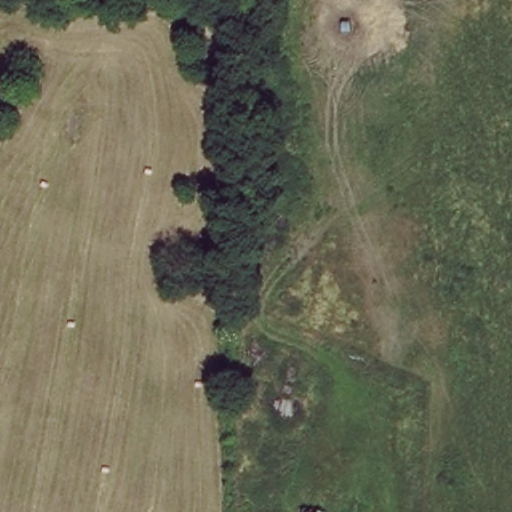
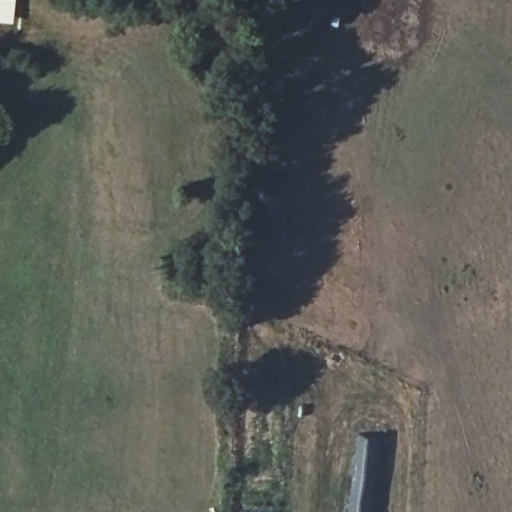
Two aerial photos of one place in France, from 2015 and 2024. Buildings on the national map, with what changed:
new [(0,22),(0,0),(17,0),(15,23),(0,22)]

